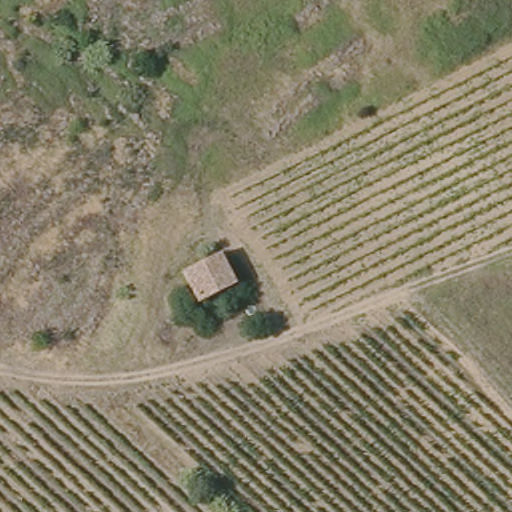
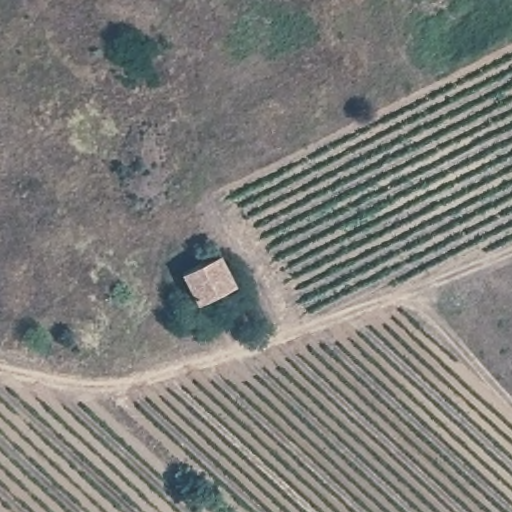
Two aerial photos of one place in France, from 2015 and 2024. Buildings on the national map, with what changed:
unchanged [(238,285),(205,298),(189,260),(223,247),(238,285)]

